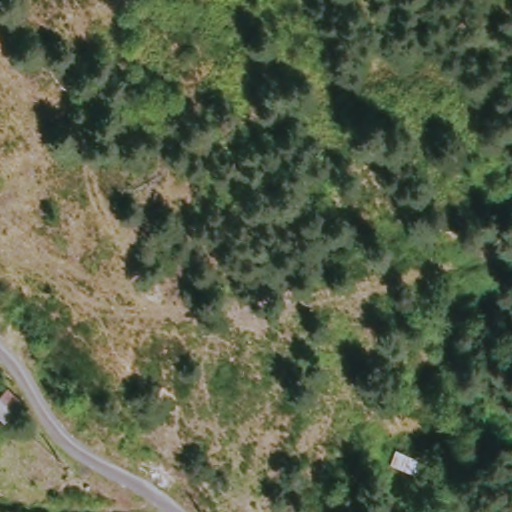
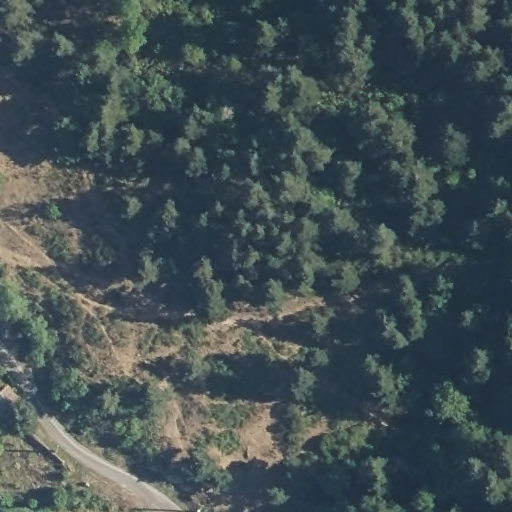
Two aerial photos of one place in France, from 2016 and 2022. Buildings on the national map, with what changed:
unchanged [(16,392),(5,407),(0,415),(0,381),(16,392)]

